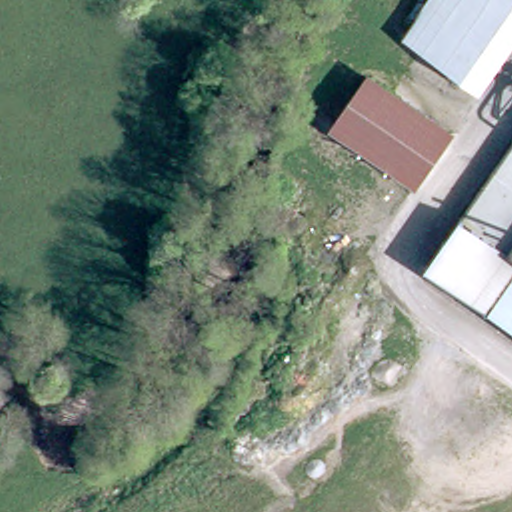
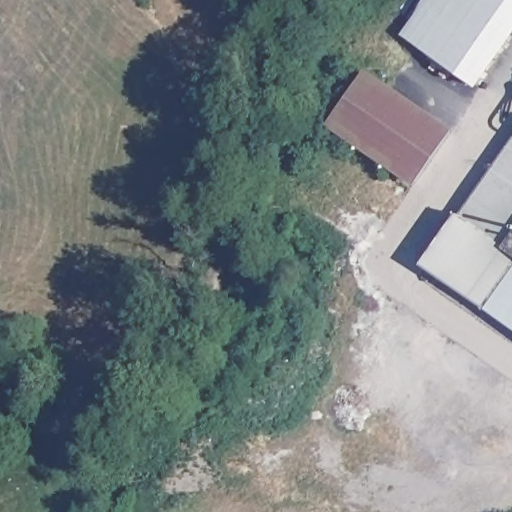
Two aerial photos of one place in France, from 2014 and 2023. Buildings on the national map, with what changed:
unchanged [(474,82),(412,37),(438,0),(512,0),(512,29),(474,82)]
unchanged [(446,126),(405,184),(379,165),(387,155),(339,120),(372,72),(446,126)]
unchanged [(425,259),(512,137),(512,321),(425,259)]

